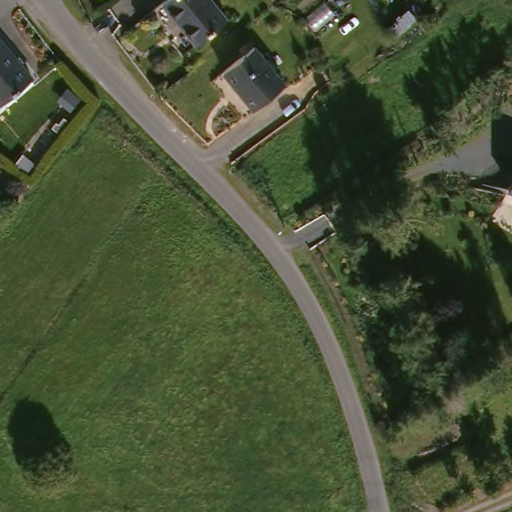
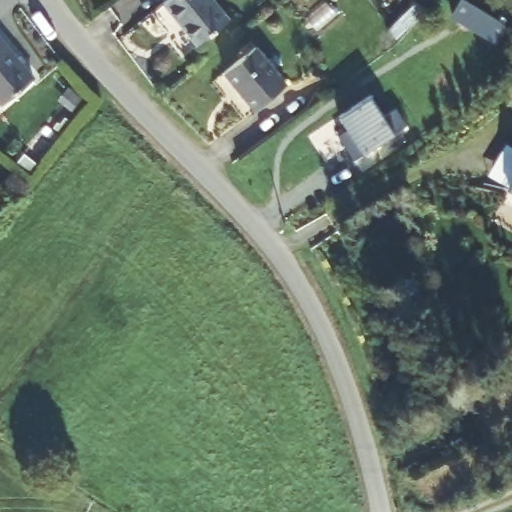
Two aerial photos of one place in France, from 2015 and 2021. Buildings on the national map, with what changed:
unchanged [(229,25),(194,49),(165,5),(173,0),(212,0),(217,6),(229,25)]
unchanged [(38,80),(8,104),(0,95),(0,34),(38,80)]
unchanged [(287,85),(254,110),(226,76),(258,51),(287,85)]
new [(348,131),(339,117),(371,97),(385,118),(396,110),(407,126),(354,161),(339,137),(348,131)]

